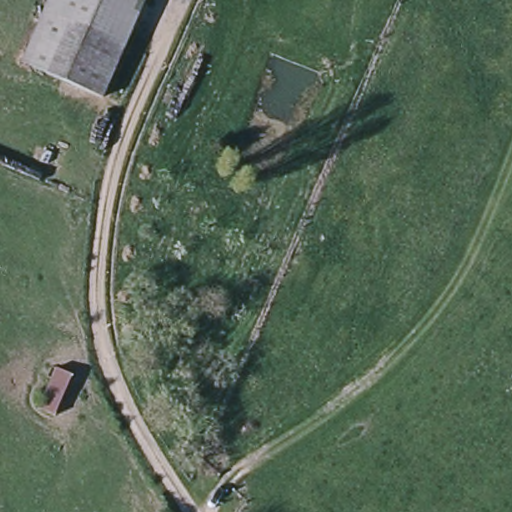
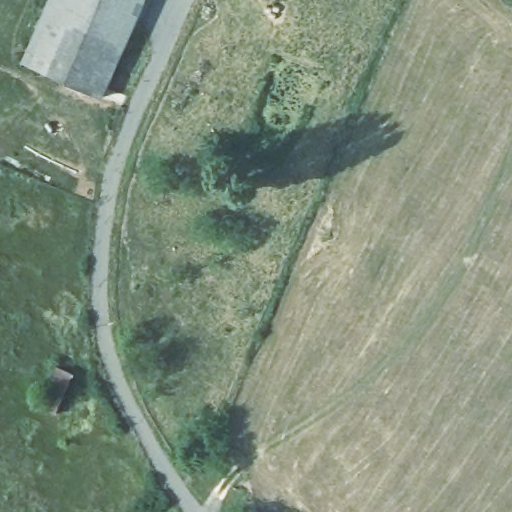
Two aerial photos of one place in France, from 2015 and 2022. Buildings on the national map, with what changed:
unchanged [(18,64),(46,0),(146,0),(103,100),(18,64)]
unchanged [(76,149),(59,192),(40,182),(56,140),(76,149)]
unchanged [(68,372),(56,415),(38,409),(50,367),(68,372)]

